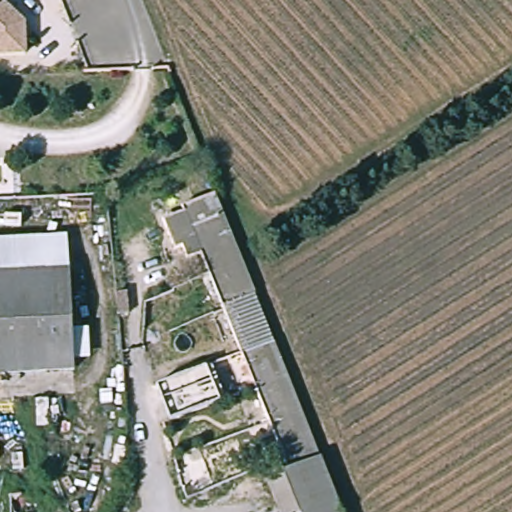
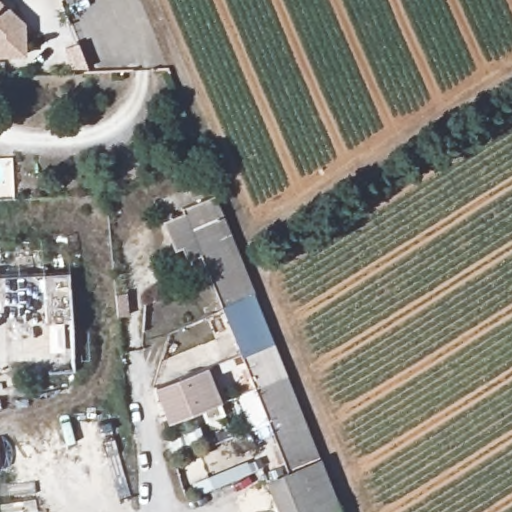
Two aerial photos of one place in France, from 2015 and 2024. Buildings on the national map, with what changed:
unchanged [(25,57),(0,58),(0,2),(24,21),(25,57)]
unchanged [(287,372),(255,386),(205,261),(193,266),(188,256),(180,258),(171,229),(188,222),(186,215),(220,203),(237,245),(287,372)]
demolished [(73,270),(0,273),(0,235),(68,232),(73,270)]
demolished [(0,370),(0,273),(73,270),(78,366),(0,370)]
new [(43,271),(68,270),(71,322),(45,324),(43,271)]
new [(209,365),(224,400),(219,403),(224,415),(206,422),(200,410),(167,423),(153,387),(209,365)]
unchanged [(315,445),(283,457),(255,386),(287,372),(315,445)]
unchanged [(290,473),(283,457),(315,445),(342,512),(285,512),(272,480),(290,473)]

